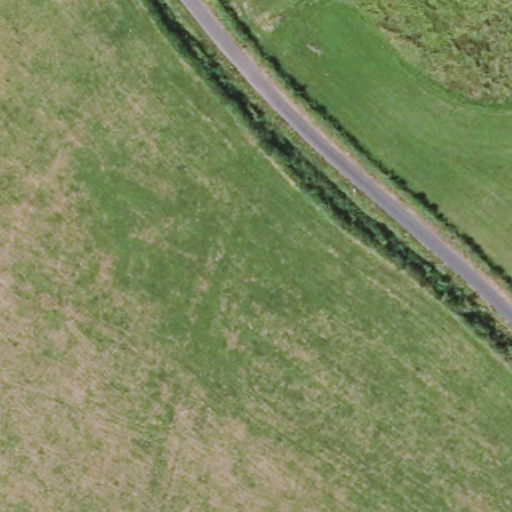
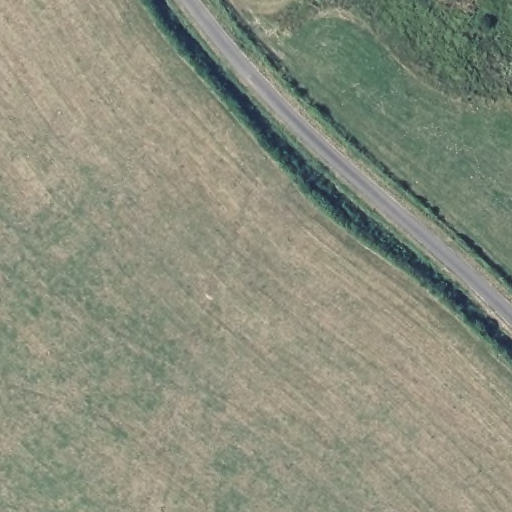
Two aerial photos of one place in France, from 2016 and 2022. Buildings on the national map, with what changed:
[]

